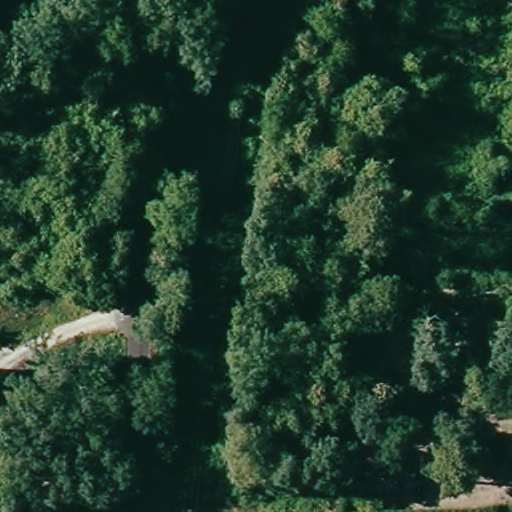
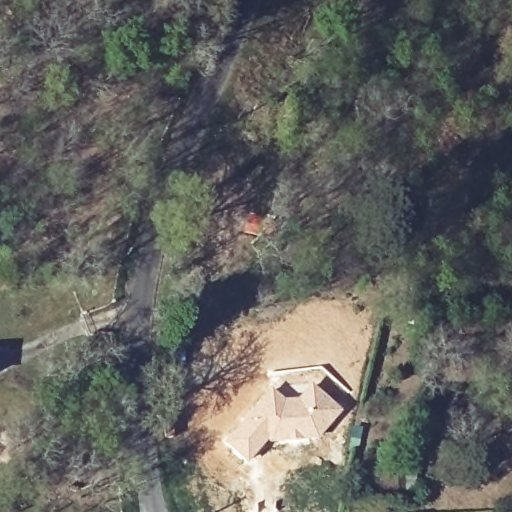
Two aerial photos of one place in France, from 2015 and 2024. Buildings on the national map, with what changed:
new [(308,382),(342,411),(320,436),(294,397),(308,382)]
new [(271,388),(284,399),(285,398),(290,398),(294,397),(320,436),(298,441),(269,444),(268,443),(247,464),(222,441),(271,388)]

